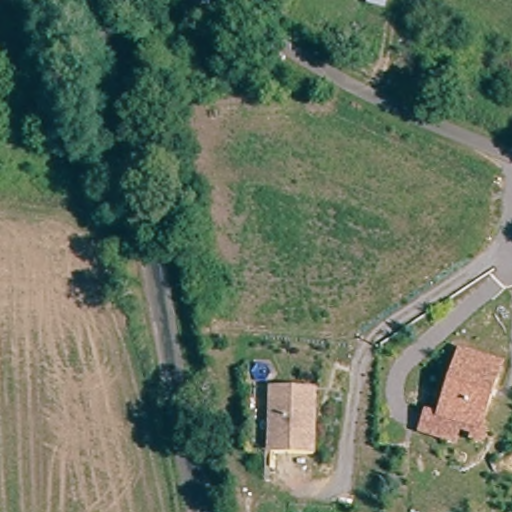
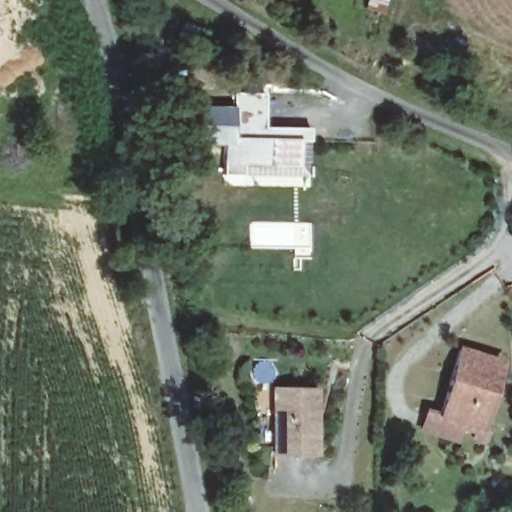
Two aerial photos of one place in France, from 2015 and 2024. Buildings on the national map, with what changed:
new [(268,94),(268,127),(312,129),(311,143),(310,175),(244,174),(226,175),(227,165),(226,145),(202,144),(203,108),(236,109),(235,94),(268,94)]
unchanged [(470,434),(473,429),(455,422),(450,434),(420,422),(426,405),(439,410),(465,345),(504,360),(497,379),(493,390),(480,424),(486,426),(481,438),(470,434)]
unchanged [(311,453),(268,449),(274,386),(316,390),(311,453)]

